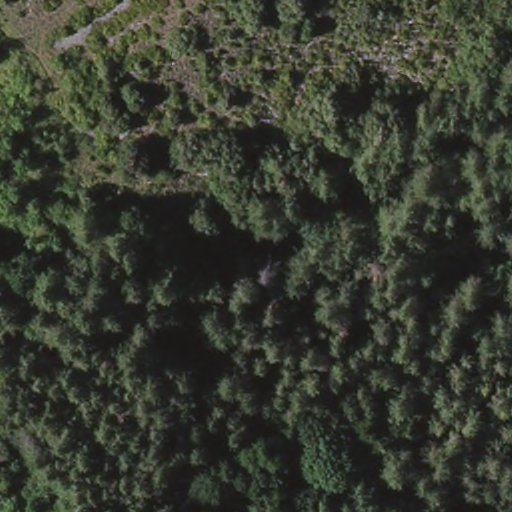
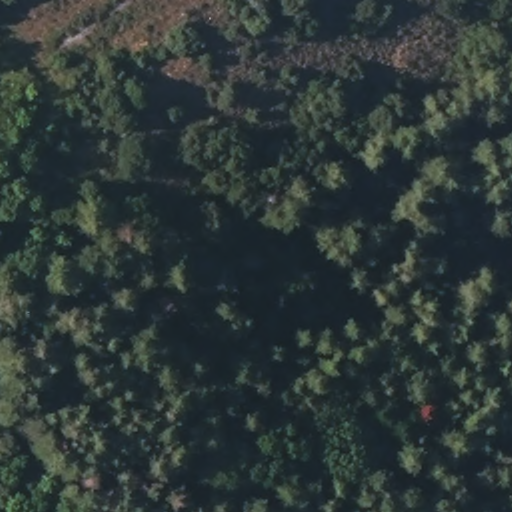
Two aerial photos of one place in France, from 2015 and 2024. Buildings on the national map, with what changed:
[]

